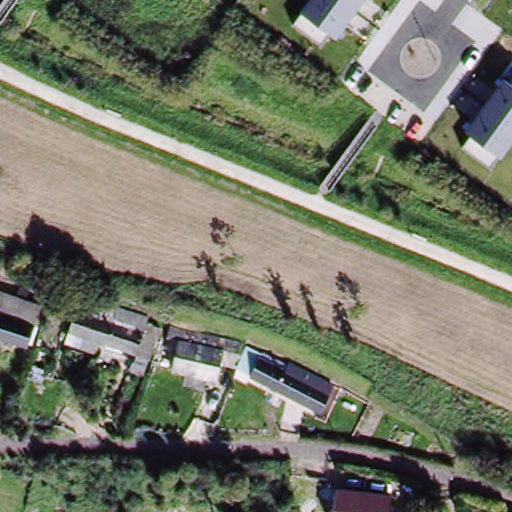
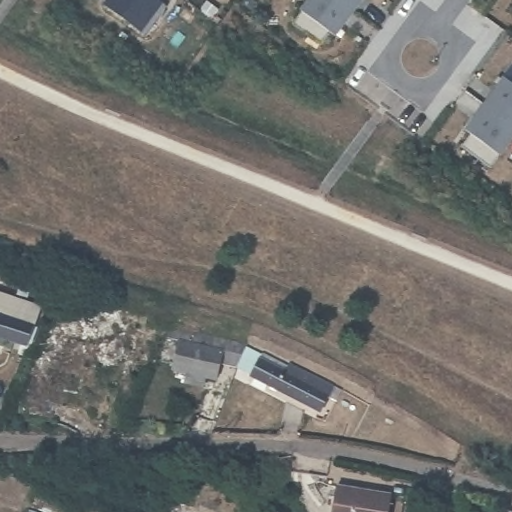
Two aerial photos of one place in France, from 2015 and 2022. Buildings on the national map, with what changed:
new [(166,7),(150,29),(111,0),(163,0),(161,3),(166,7)]
unchanged [(327,34),(319,45),(291,26),(301,13),(299,9),(306,0),(364,0),(336,39),(327,34)]
unchanged [(500,158),(497,157),(490,167),(461,148),(471,136),(465,130),(502,79),(510,85),(512,81),(512,143),(500,158)]
unchanged [(28,333),(0,324),(0,285),(40,298),(28,333)]
unchanged [(72,344),(83,311),(141,329),(131,363),(96,352),(91,366),(68,359),(72,344)]
unchanged [(171,334),(177,321),(256,347),(252,355),(243,373),(224,365),(229,352),(186,339),(171,334)]
unchanged [(177,368),(186,339),(229,352),(224,365),(216,383),(213,381),(209,392),(189,385),(193,374),(177,368)]
unchanged [(292,374),(294,371),(342,392),(333,412),(243,373),(252,355),(292,374)]
unchanged [(385,512),(330,512),(333,487),(387,495),(385,512)]

